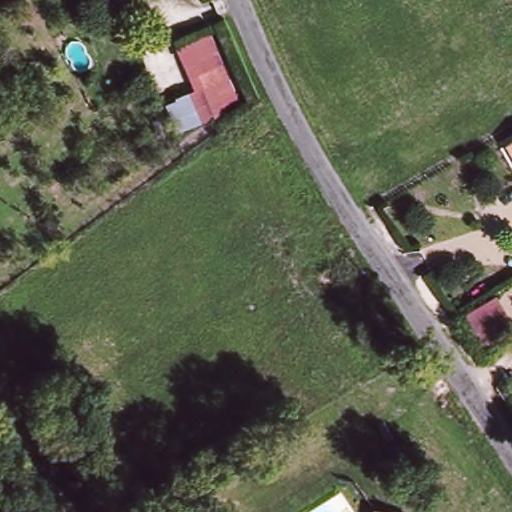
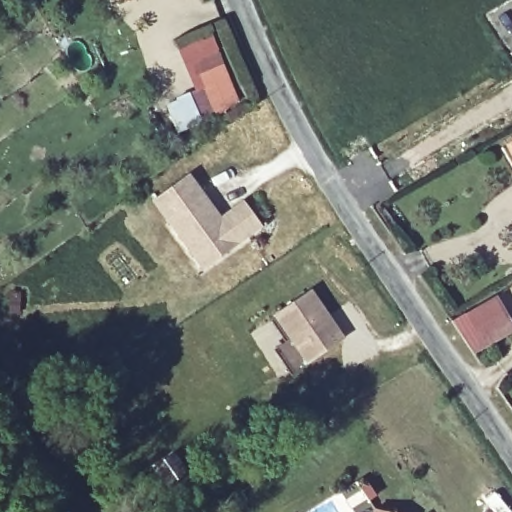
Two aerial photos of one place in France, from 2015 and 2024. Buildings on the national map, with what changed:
unchanged [(120,0),(136,0),(122,5),(120,0)]
unchanged [(194,94),(172,39),(209,24),(239,100),(211,120),(178,134),(165,104),(194,94)]
unchanged [(508,149),(512,146),(512,154),(508,149)]
new [(263,229),(202,272),(150,202),(188,173),(220,217),(242,202),(263,229)]
new [(342,338),(308,363),(275,315),(310,291),(342,338)]
unchanged [(512,320),(512,325),(480,343),(464,314),(498,296),(512,320)]
new [(179,459),(191,476),(171,491),(159,473),(179,459)]
unchanged [(373,508),(391,512),(373,512),(373,508)]

